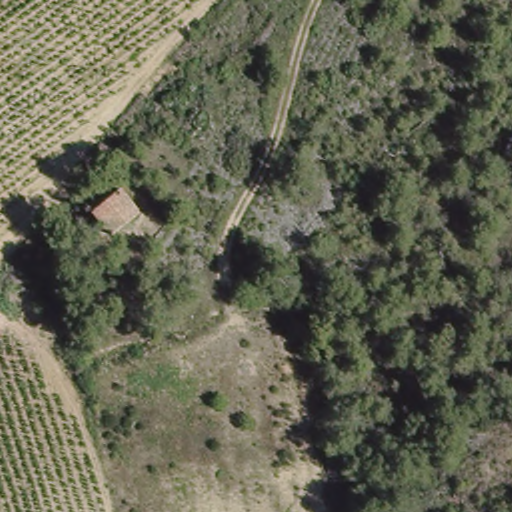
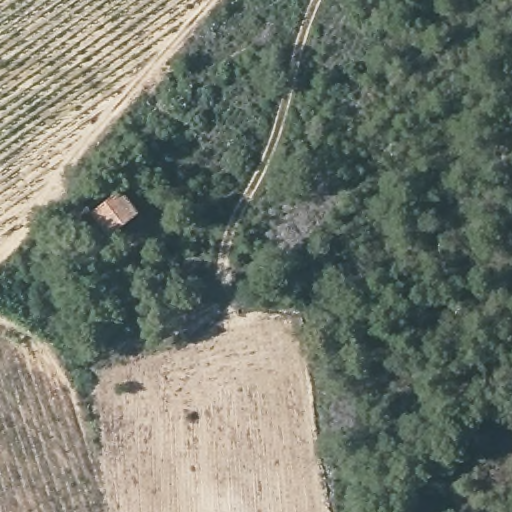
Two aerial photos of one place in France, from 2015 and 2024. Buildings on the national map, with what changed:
unchanged [(132,222),(106,241),(90,216),(117,199),(132,222)]

